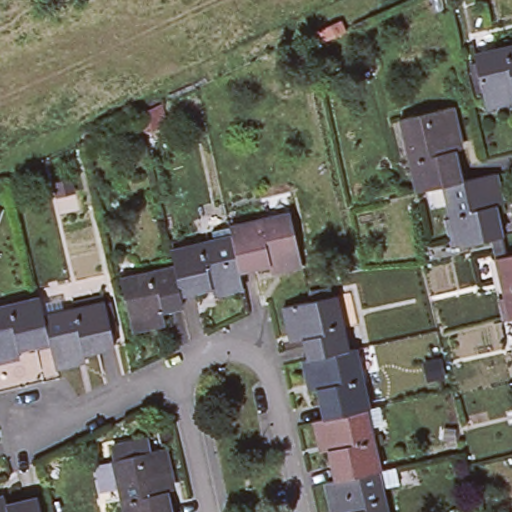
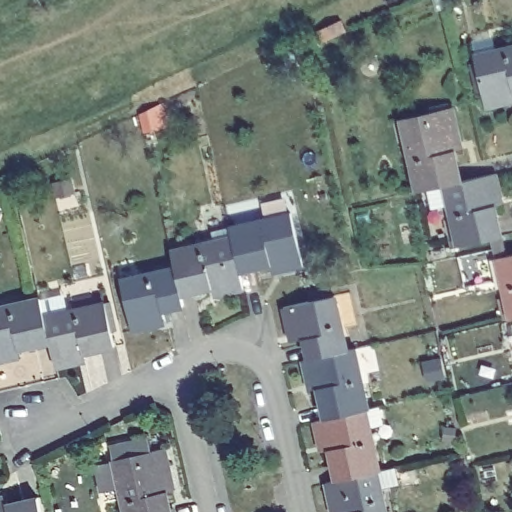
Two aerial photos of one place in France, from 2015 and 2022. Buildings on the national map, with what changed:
unchanged [(510,95),(485,101),(475,51),(512,42),(512,89),(508,90),(510,95)]
unchanged [(405,113),(457,102),(464,136),(456,138),(465,176),(448,180),(421,186),(405,113)]
unchanged [(502,231),(461,241),(448,180),(465,176),(496,169),(502,195),(495,196),(502,231)]
unchanged [(300,260),(276,266),(274,258),(237,268),(230,233),(227,223),(289,210),(300,260)]
unchanged [(237,268),(241,284),(220,290),(217,283),(180,293),(173,263),(170,247),(230,233),(237,268)]
unchanged [(512,253),(512,314),(498,256),(512,253)]
unchanged [(180,293),(182,303),(157,309),(160,321),(132,327),(120,276),(173,263),(180,293)]
unchanged [(306,329),(293,332),(287,304),(338,291),(351,347),(312,356),(306,329)]
unchanged [(45,292),(48,309),(53,335),(16,343),(18,351),(0,355),(0,302),(45,292)]
unchanged [(117,340),(81,348),(82,356),(59,361),(53,335),(48,309),(107,295),(117,340)]
unchanged [(373,406),(369,407),(330,416),(321,379),(313,381),(307,357),(312,356),(351,347),(358,345),(373,406)]
unchanged [(383,467),(380,468),(338,478),(329,442),(324,442),(318,419),(330,416),(369,407),(383,467)]
unchanged [(163,477),(170,512),(126,512),(113,451),(110,437),(146,429),(150,442),(162,439),(170,475),(163,477)]
unchanged [(349,512),(347,505),(335,507),(328,481),(338,478),(380,468),(389,512),(349,512)]
unchanged [(4,502),(40,495),(44,512),(0,512),(0,495),(2,494),(4,502)]

